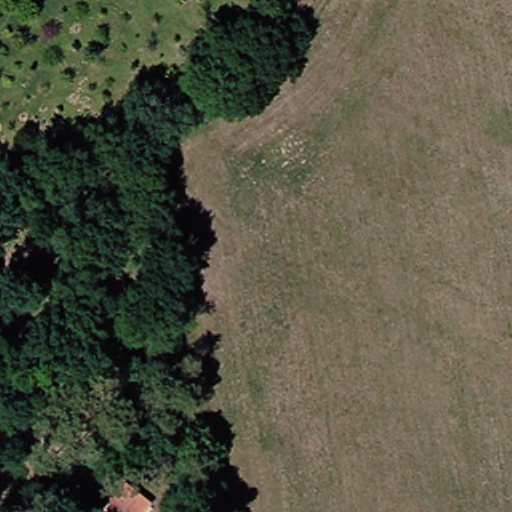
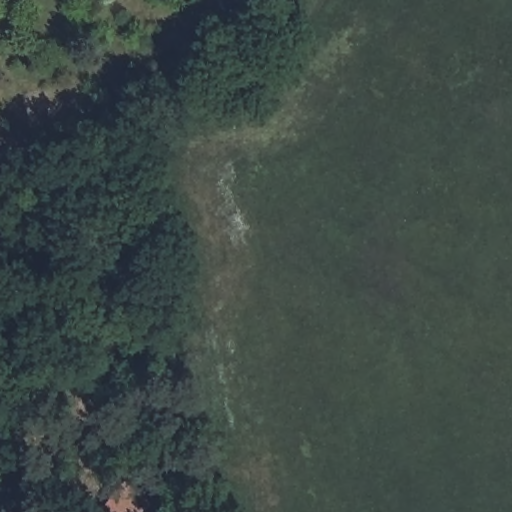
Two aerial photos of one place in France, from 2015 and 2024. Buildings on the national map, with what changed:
unchanged [(148,512),(119,512),(127,498),(148,512)]

